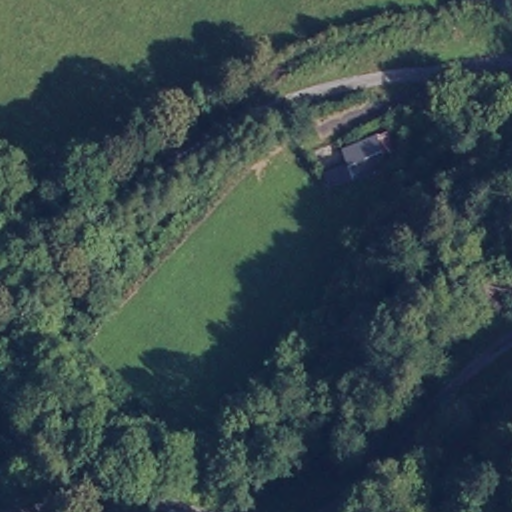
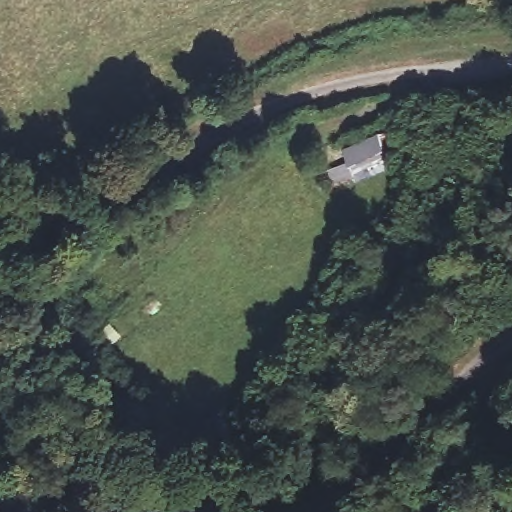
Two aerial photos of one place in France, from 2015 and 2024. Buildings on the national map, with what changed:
unchanged [(348,171),(340,153),(377,135),(386,154),(348,171)]

